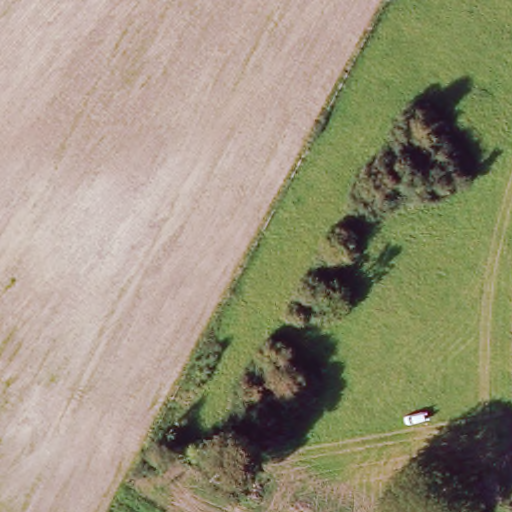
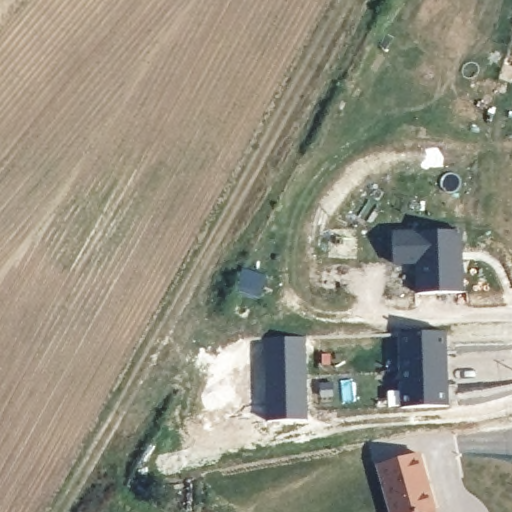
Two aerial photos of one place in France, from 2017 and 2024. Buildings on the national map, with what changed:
new [(457,228),(460,291),(416,293),(415,261),(391,262),(390,231),(457,228)]
new [(266,275),(260,297),(237,291),(244,269),(266,275)]
new [(447,330),(449,405),(404,406),(402,332),(447,330)]
new [(266,338),(307,337),(308,420),(267,421),(266,338)]
new [(421,453),(427,477),(425,477),(427,488),(430,487),(437,509),(438,512),(394,512),(380,465),(421,453)]

